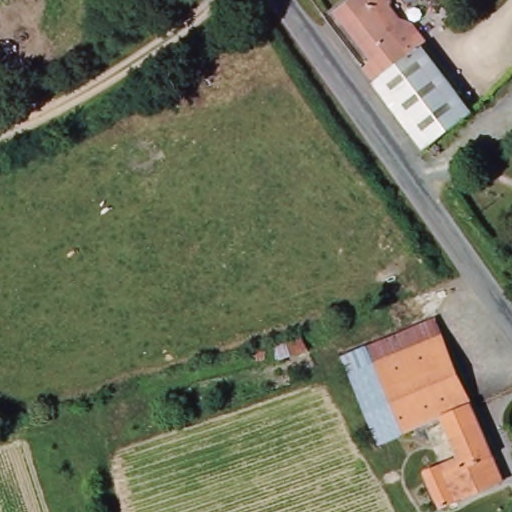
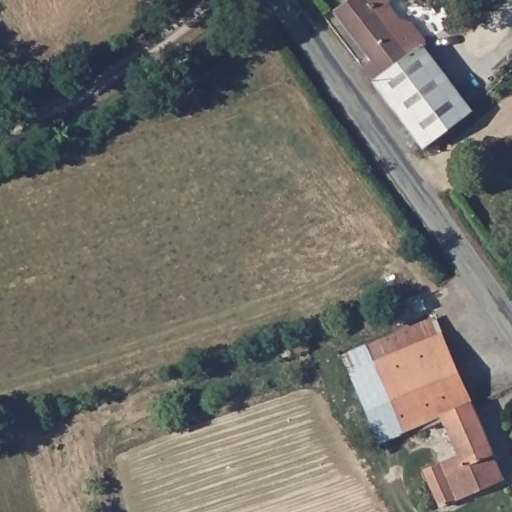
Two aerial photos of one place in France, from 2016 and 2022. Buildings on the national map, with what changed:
unchanged [(381,2),(387,10),(406,23),(419,40),(420,53),(432,69),(464,112),(417,148),(380,98),(369,82),(357,67),(366,60),(328,11),(343,0),(385,0),(381,2)]
unchanged [(440,336),(372,367),(403,433),(398,435),(380,442),(351,377),(342,357),(348,354),(433,319),(440,336)]
unchanged [(468,400),(502,480),(442,506),(439,507),(430,487),(423,471),(458,456),(445,421),(431,427),(429,422),(415,427),(403,433),(372,367),(440,336),(468,400)]

